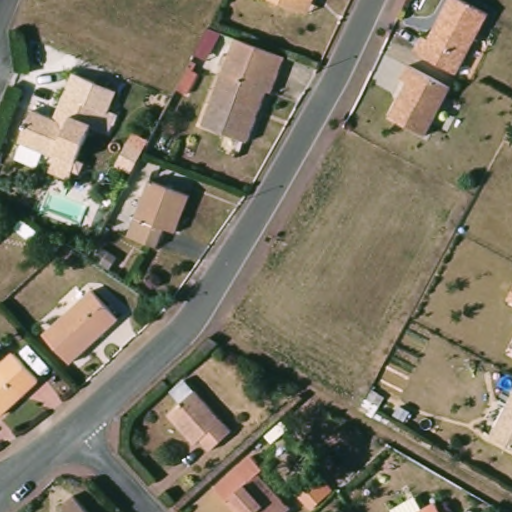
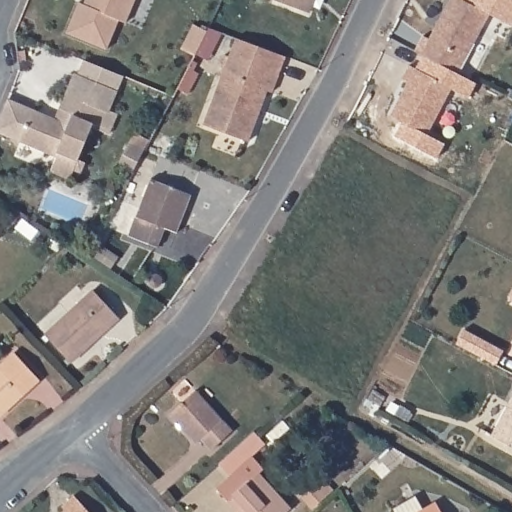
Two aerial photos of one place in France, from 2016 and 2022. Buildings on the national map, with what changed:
new [(84,4),(86,0),(135,0),(126,22),(119,19),(107,49),(66,33),(79,2),(84,4)]
unchanged [(297,4),(286,0),(310,0),(307,8),(297,4)]
unchanged [(485,12),(454,72),(431,60),(412,49),(420,34),(426,37),(435,19),(446,0),(462,0),(485,12)]
unchanged [(238,41),(287,60),(281,79),(275,96),(270,94),(251,145),(206,128),(231,60),(238,41)]
unchanged [(447,86),(422,133),(386,114),(404,81),(398,77),(405,63),(447,86)]
unchanged [(64,93),(73,73),(121,93),(113,114),(98,107),(76,159),(83,162),(79,173),(72,170),(71,172),(68,179),(49,171),(52,165),(55,158),(55,157),(18,141),(31,110),(40,114),(59,121),(62,113),(69,95),(64,93)]
unchanged [(193,192),(177,231),(165,225),(157,243),(128,231),(152,175),(193,192)]
unchanged [(512,284),(512,301),(505,297),(512,284)]
unchanged [(73,358),(47,329),(94,285),(120,313),(108,324),(85,346),(73,358)]
unchanged [(18,351),(43,378),(0,414),(0,367),(18,351)]
unchanged [(212,443),(200,432),(195,437),(168,408),(181,396),(170,385),(184,373),(194,384),(231,425),(212,443)]
unchanged [(512,389),(512,448),(487,434),(512,389)]
unchanged [(254,449),(265,461),(259,467),(293,501),(282,512),(243,512),(228,496),(216,482),(254,449)]
unchanged [(72,496),(87,512),(66,512),(61,506),(72,496)]
unchanged [(439,512),(411,512),(432,499),(439,512)]

